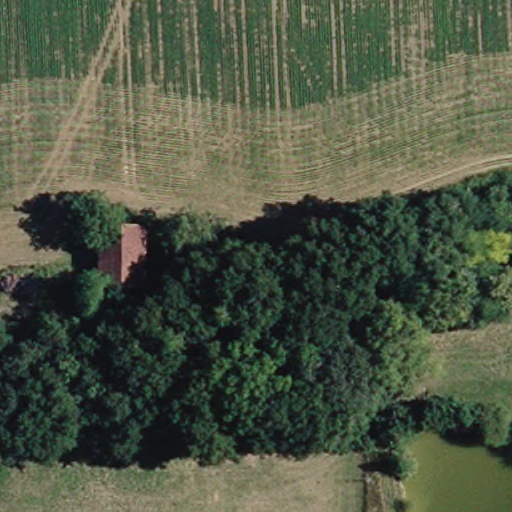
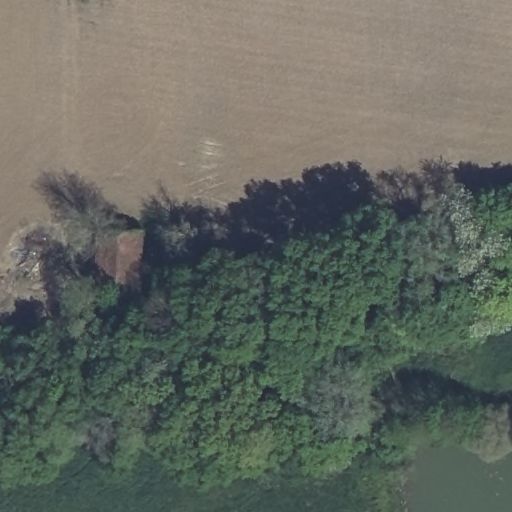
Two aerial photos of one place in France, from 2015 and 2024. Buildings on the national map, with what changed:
unchanged [(147,287),(107,290),(104,230),(145,228),(147,287)]

